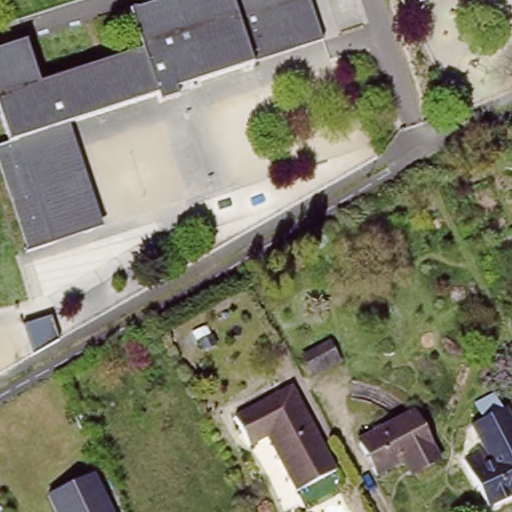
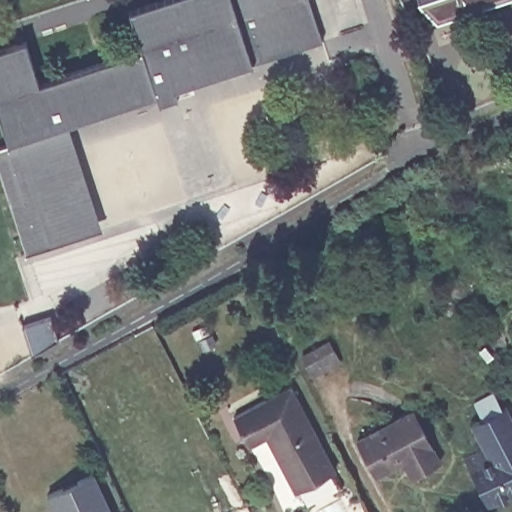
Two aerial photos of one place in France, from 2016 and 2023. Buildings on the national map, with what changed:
unchanged [(155,101),(153,93),(64,121),(16,136),(48,241),(21,250),(2,189),(0,182),(0,141),(2,140),(0,133),(0,46),(18,40),(33,82),(135,50),(122,10),(155,0),(304,0),(305,5),(312,27),(316,42),(251,62),(171,87),(173,95),(155,101)]
unchanged [(417,7),(415,0),(442,0),(417,7)]
unchanged [(96,226),(48,241),(16,136),(64,121),(96,226)]
unchanged [(30,357),(19,325),(49,315),(57,341),(30,357)]
unchanged [(339,353),(315,367),(305,351),(330,338),(339,353)]
unchanged [(334,464),(296,485),(267,431),(250,440),(234,411),(290,382),(334,464)]
unchanged [(465,468),(463,465),(481,456),(470,431),(480,427),(471,410),(493,398),(499,413),(503,411),(512,431),(512,498),(487,509),(479,493),(475,495),(461,469),(465,468)]
unchanged [(438,463),(415,475),(406,460),(375,476),(356,443),(411,415),(438,463)]
unchanged [(50,512),(43,498),(88,476),(105,512),(50,512)]

